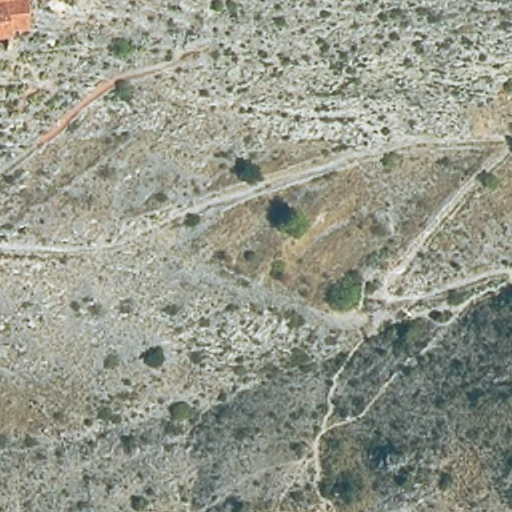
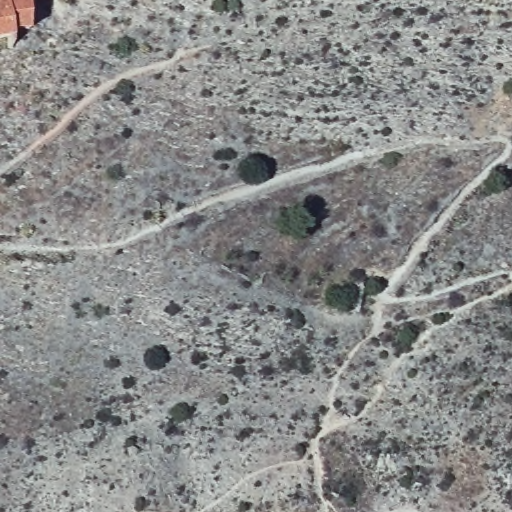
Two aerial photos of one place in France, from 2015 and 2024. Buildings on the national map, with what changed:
unchanged [(30,32),(0,38),(0,0),(27,0),(30,32)]

